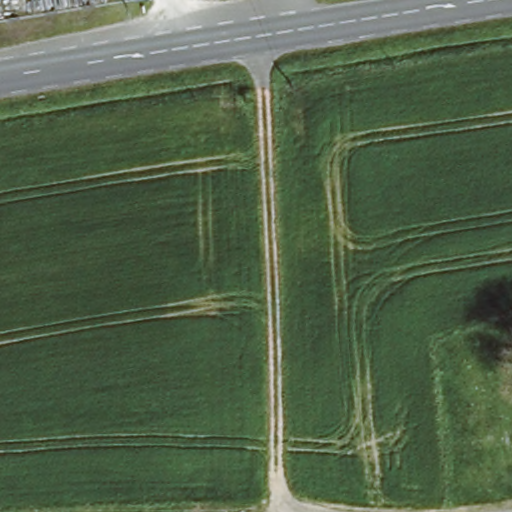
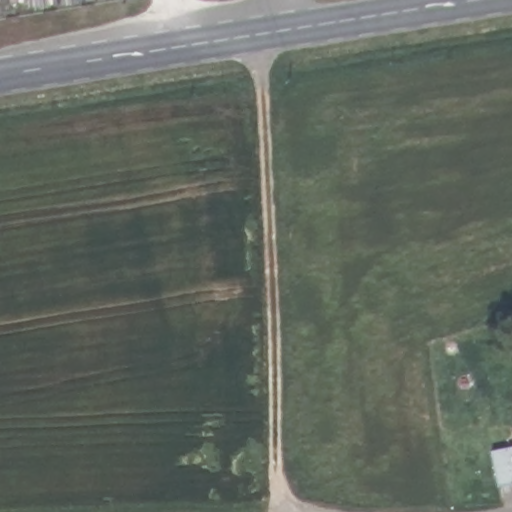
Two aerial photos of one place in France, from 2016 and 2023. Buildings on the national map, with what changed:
new [(500,491),(494,453),(512,449),(512,489),(500,491)]

